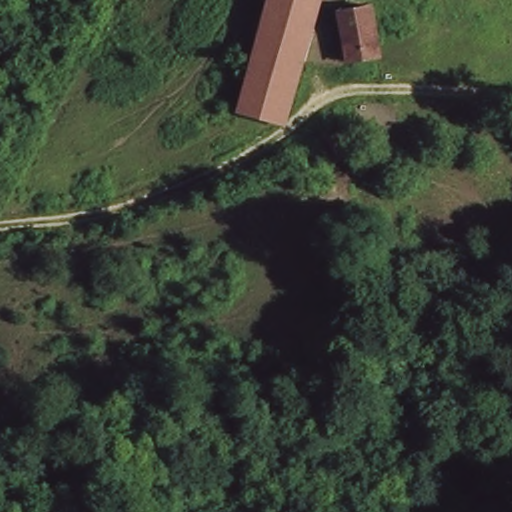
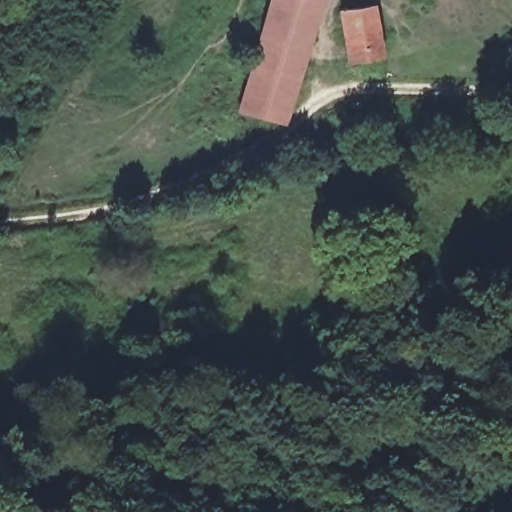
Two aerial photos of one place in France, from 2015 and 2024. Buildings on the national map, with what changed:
unchanged [(327,0),(318,26),(274,16),(279,0),(327,0)]
unchanged [(354,60),(342,12),(377,0),(380,15),(390,50),(354,60)]
unchanged [(252,81),(274,16),(318,26),(296,92),(252,81)]
unchanged [(288,117),(243,106),(252,81),(296,92),(288,117)]

